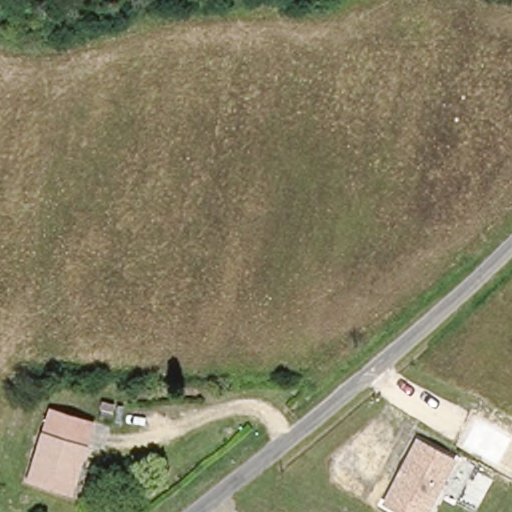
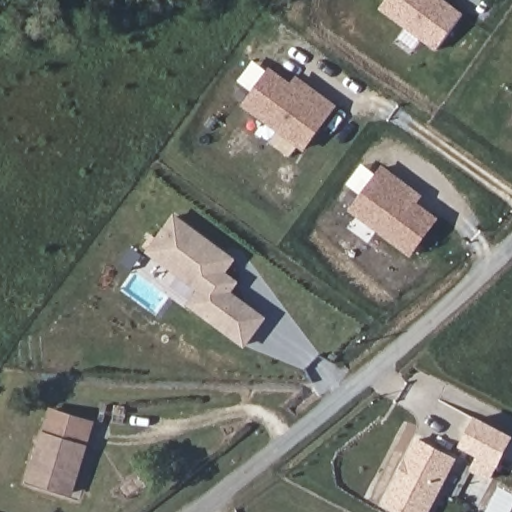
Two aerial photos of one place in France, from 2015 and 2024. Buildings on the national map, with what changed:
new [(443,0),(460,13),(434,49),(380,9),(387,0),(443,0)]
new [(268,67),(330,110),(302,150),(240,107),(268,67)]
new [(379,169),(440,216),(409,257),(348,210),(379,169)]
new [(172,214),(235,260),(227,272),(238,282),(231,292),(264,318),(243,350),(184,306),(194,291),(144,255),(172,214)]
unchanged [(28,477),(51,409),(92,425),(68,490),(28,477)]
new [(499,467),(460,447),(475,416),(512,435),(512,443),(499,467)]
unchanged [(457,458),(431,512),(398,512),(383,503),(417,437),(457,458)]

